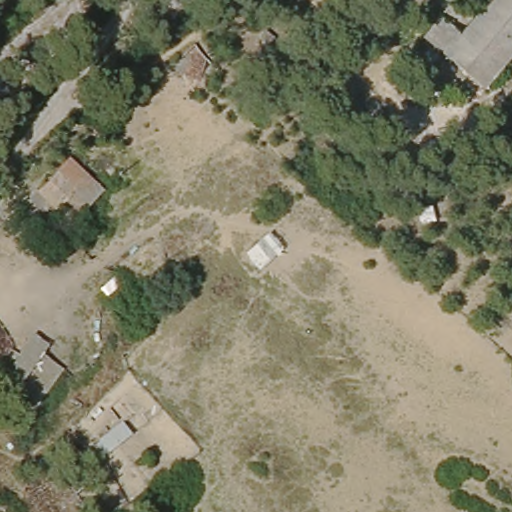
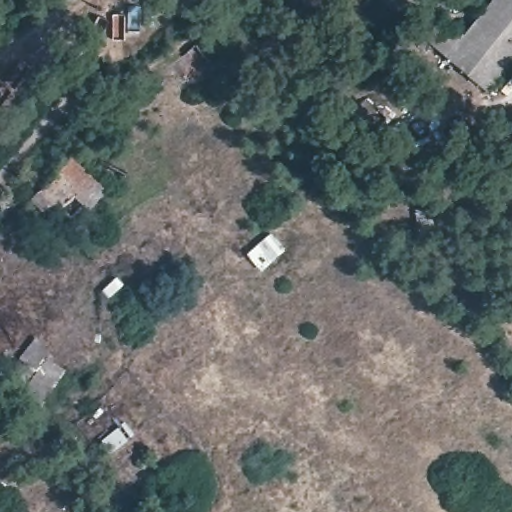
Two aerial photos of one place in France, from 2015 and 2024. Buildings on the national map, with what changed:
unchanged [(487,90),(425,39),(442,18),(464,35),(492,0),(512,0),(512,59),(487,90)]
unchanged [(209,60),(186,81),(172,65),(196,45),(209,60)]
unchanged [(105,186),(75,217),(60,203),(49,214),(30,195),(70,153),(105,186)]
unchanged [(0,411),(0,376),(27,344),(66,366),(18,425),(0,411)]

